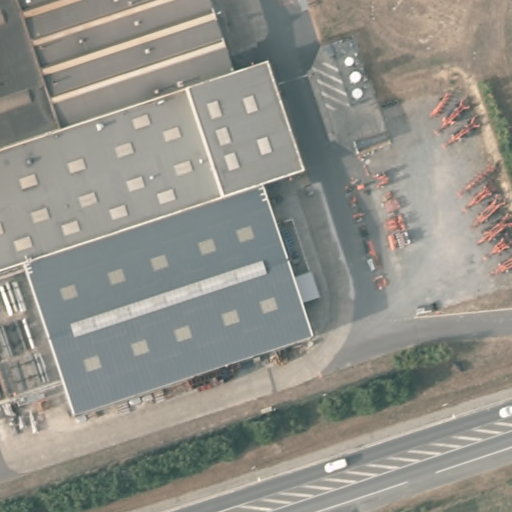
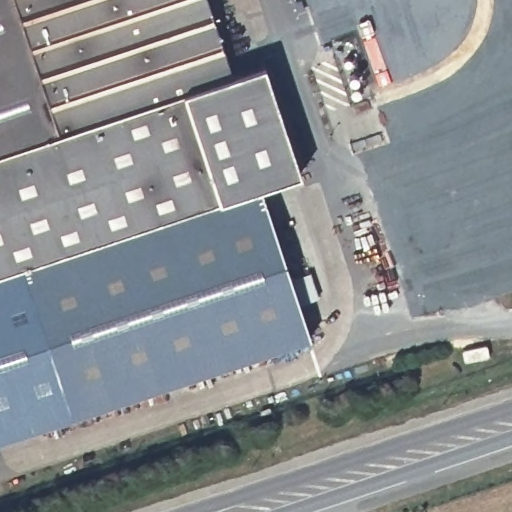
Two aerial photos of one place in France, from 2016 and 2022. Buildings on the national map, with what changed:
unchanged [(93,119),(22,142),(0,149),(0,0),(207,0),(231,73),(93,119)]
unchanged [(266,65),(302,175),(0,273),(0,149),(231,73),(266,65)]
unchanged [(310,337),(72,416),(22,266),(261,189),(310,337)]
new [(72,416),(74,415),(0,440),(0,273),(22,266),(72,416)]

